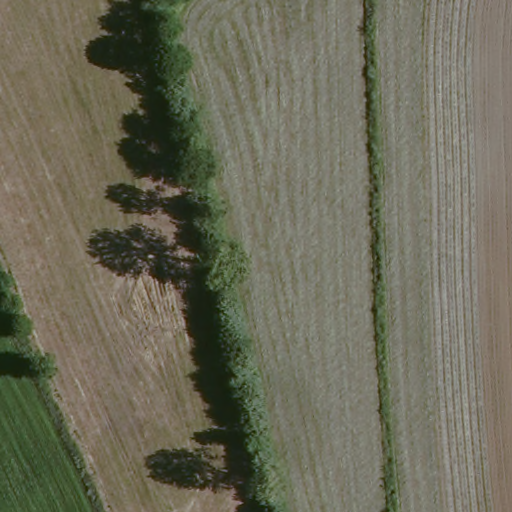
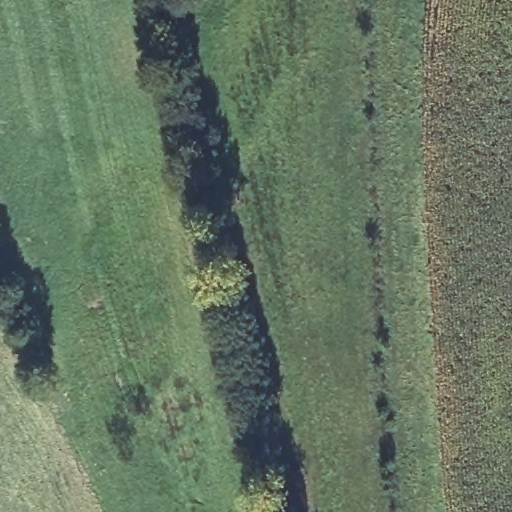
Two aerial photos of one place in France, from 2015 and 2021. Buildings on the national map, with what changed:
[]

